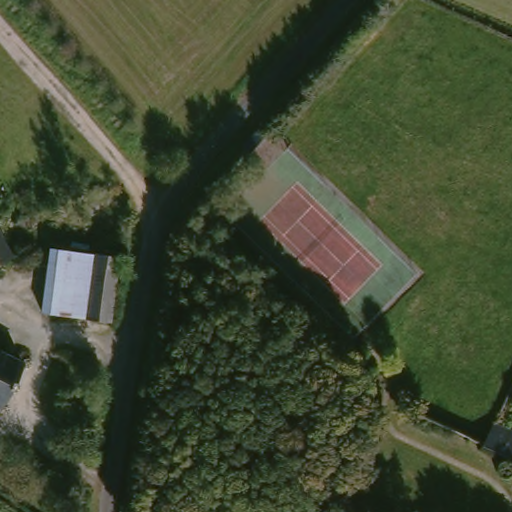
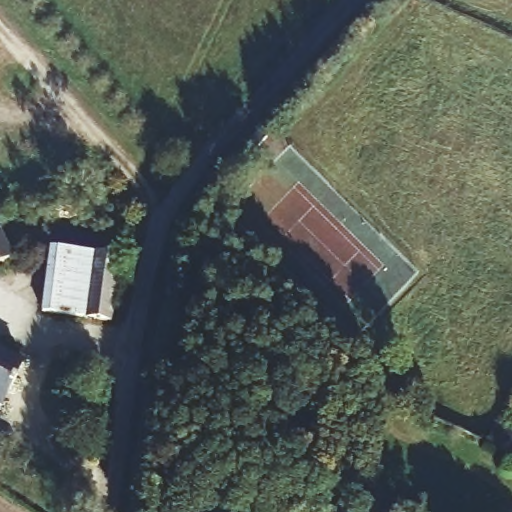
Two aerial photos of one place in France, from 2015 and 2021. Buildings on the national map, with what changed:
unchanged [(259,134),(267,141),(253,154),(247,148),(259,134)]
unchanged [(21,251),(0,265),(0,218),(21,251)]
unchanged [(81,256),(75,322),(33,317),(41,252),(81,256)]
unchanged [(106,324),(75,322),(81,256),(116,260),(106,324)]
unchanged [(22,367),(0,410),(0,356),(22,367)]
unchanged [(497,425),(512,432),(512,460),(486,448),(497,425)]

